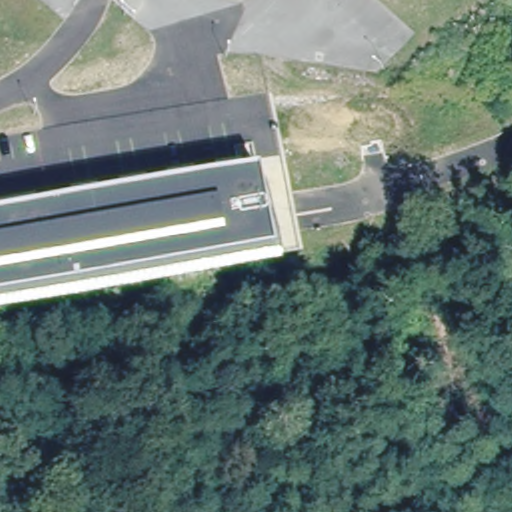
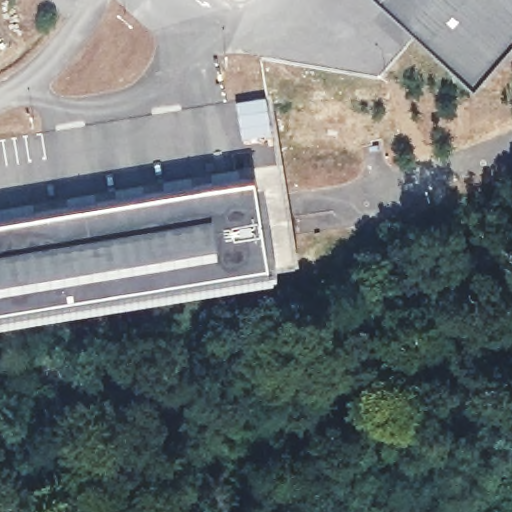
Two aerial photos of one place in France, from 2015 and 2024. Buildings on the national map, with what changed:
new [(472,81),(382,0),(512,0),(512,37),(472,81)]
unchanged [(263,223),(268,223),(275,263),(0,307),(0,215),(254,172),(263,223)]

